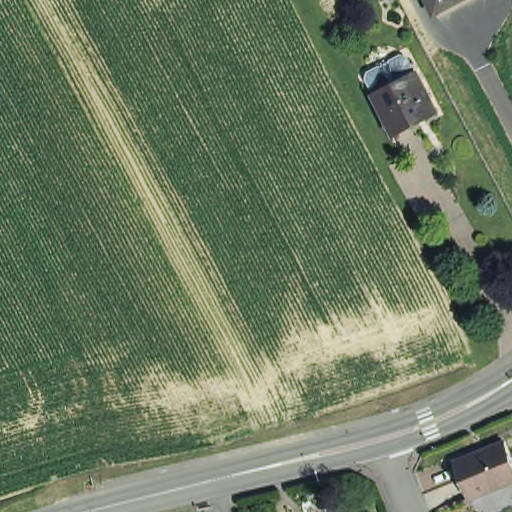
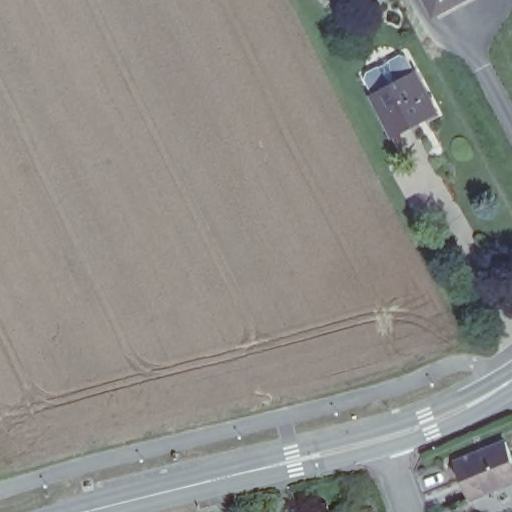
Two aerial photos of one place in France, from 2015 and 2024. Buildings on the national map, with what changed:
unchanged [(437,13),(430,0),(462,0),(453,5),(437,13)]
unchanged [(437,116),(395,138),(375,101),(417,79),(437,116)]
unchanged [(467,488),(452,452),(502,431),(512,456),(512,469),(468,488),(467,488)]
unchanged [(512,494),(477,509),(468,488),(512,469),(512,494)]

